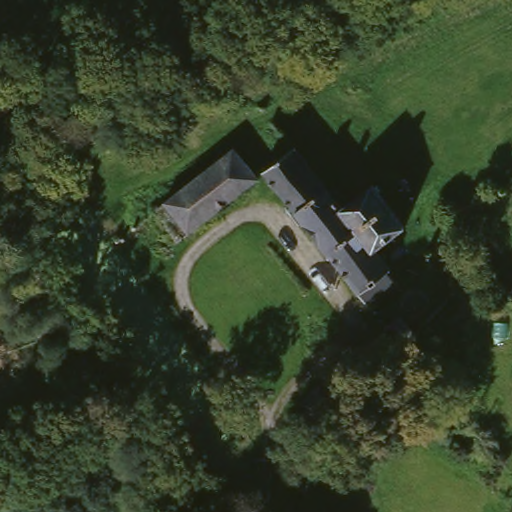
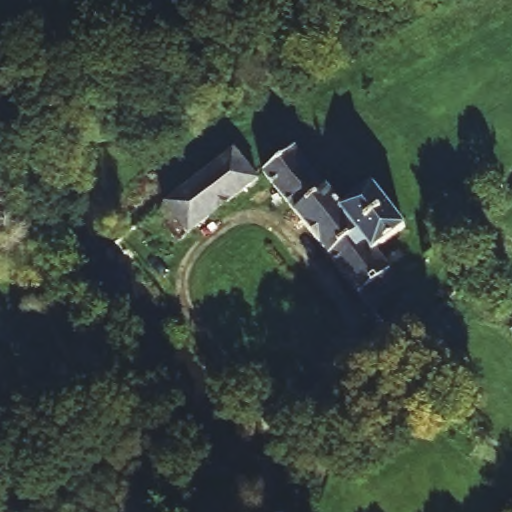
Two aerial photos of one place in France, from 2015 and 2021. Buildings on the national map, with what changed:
unchanged [(264,180),(194,234),(170,201),(241,147),(264,180)]
unchanged [(336,191),(344,186),(350,193),(344,198),(352,209),(381,185),(412,227),(384,250),(390,257),(410,241),(432,267),(377,308),(271,171),(304,148),(336,191)]
unchanged [(414,335),(402,345),(384,323),(396,314),(414,335)]
unchanged [(345,392),(351,398),(355,406),(351,413),(329,429),(313,404),(333,391),(345,392)]

